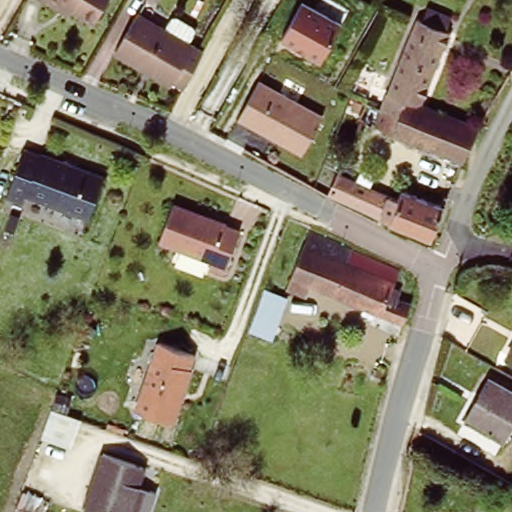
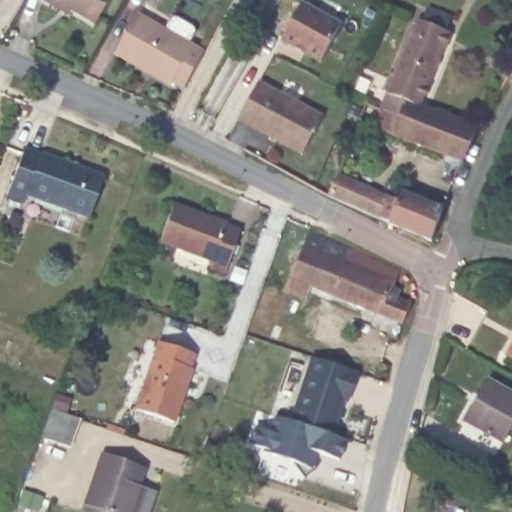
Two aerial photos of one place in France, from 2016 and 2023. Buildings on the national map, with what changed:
unchanged [(78,1),(76,0),(108,0),(99,15),(78,1)]
unchanged [(280,40),(301,1),(340,23),(318,62),(280,40)]
unchanged [(177,75),(173,81),(119,48),(140,11),(194,43),(196,39),(210,44),(188,83),(177,75)]
unchanged [(425,11),(454,24),(425,97),(411,93),(405,111),(385,101),(425,11)]
unchanged [(236,122),(257,83),(320,116),(300,155),(236,122)]
unchanged [(376,119),(385,101),(405,111),(411,93),(425,97),(481,119),(466,157),(376,119)]
unchanged [(89,219),(25,196),(23,204),(7,199),(23,153),(39,159),(40,155),(103,177),(89,219)]
unchanged [(331,192),(341,170),(402,195),(406,189),(449,203),(435,238),(331,192)]
unchanged [(240,226),(227,270),(211,265),(215,257),(161,237),(173,201),(240,226)]
unchanged [(409,274),(410,285),(395,287),(393,297),(411,302),(411,305),(405,326),(380,316),(378,323),(365,317),(367,310),(311,288),(306,300),(290,292),(311,231),(409,274)]
unchanged [(286,295),(273,333),(251,327),(267,285),(286,295)]
unchanged [(196,355),(176,418),(140,408),(158,343),(196,355)]
unchanged [(508,351),(512,344),(512,353),(508,351)]
new [(347,405),(342,402),(331,437),(344,441),(338,460),(315,454),(312,468),(314,470),(302,476),(293,463),(262,452),(262,450),(249,445),(255,428),(268,433),(275,415),(290,422),(311,358),(357,374),(347,405)]
unchanged [(511,429),(505,440),(464,419),(487,373),(512,387),(512,429),(511,429)]
unchanged [(80,416),(68,447),(42,436),(52,407),(80,416)]
unchanged [(88,503),(108,450),(150,466),(133,512),(113,512),(88,503)]

